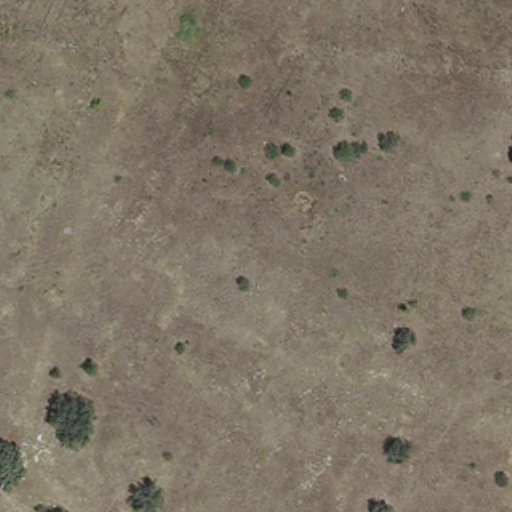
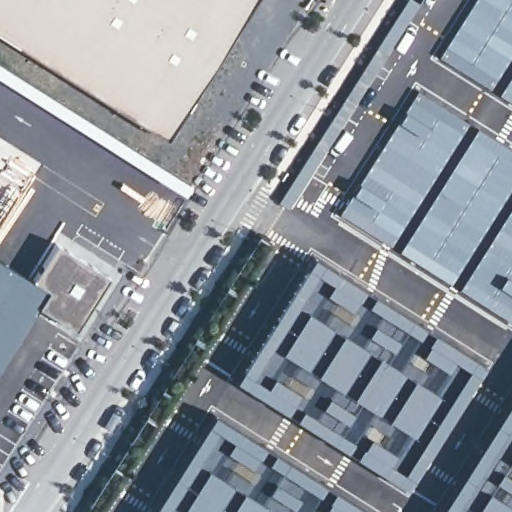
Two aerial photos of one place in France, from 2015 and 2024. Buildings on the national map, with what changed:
new [(0,32),(0,0),(253,0),(165,136),(0,32)]
new [(438,56),(473,0),(512,0),(512,52),(489,88),(438,56)]
new [(512,73),(512,102),(499,94),(512,73)]
new [(468,123),(390,246),(339,214),(417,91),(468,123)]
new [(512,184),(450,283),(399,250),(476,126),(512,149),(512,184)]
new [(459,289),(512,205),(512,320),(511,322),(459,289)]
new [(53,239),(109,275),(73,332),(36,307),(45,289),(29,277),(53,239)]
new [(483,366),(405,487),(235,379),(313,257),(483,366)]
new [(29,277),(45,289),(36,307),(20,338),(0,366),(0,259),(29,277)]
new [(512,398),(512,512),(440,512),(512,398)]
new [(371,512),(152,512),(213,415),(371,512)]

